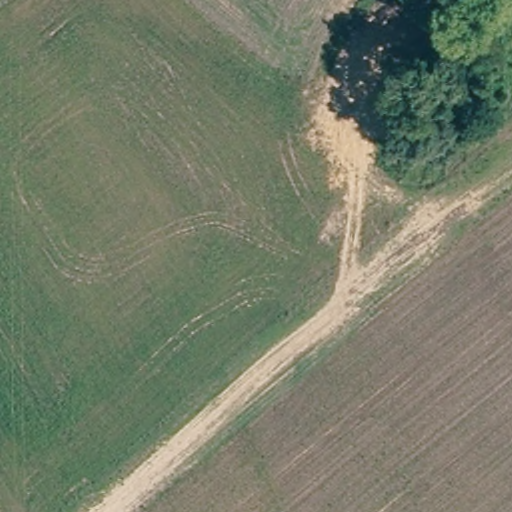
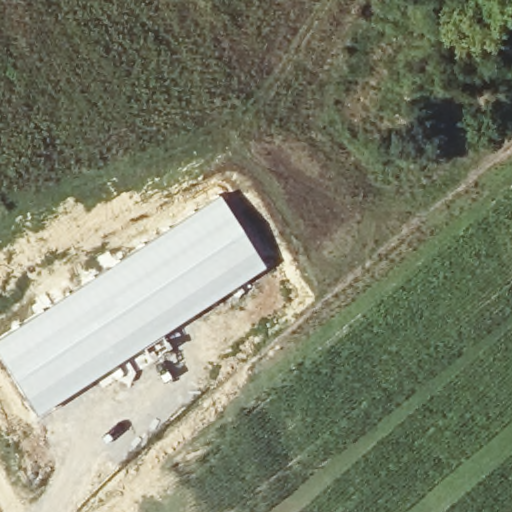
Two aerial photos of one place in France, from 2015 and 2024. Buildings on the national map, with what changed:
unchanged [(512,75),(488,56),(512,27),(512,75)]
new [(221,194),(266,267),(56,401),(35,413),(0,356),(0,335),(221,194)]

